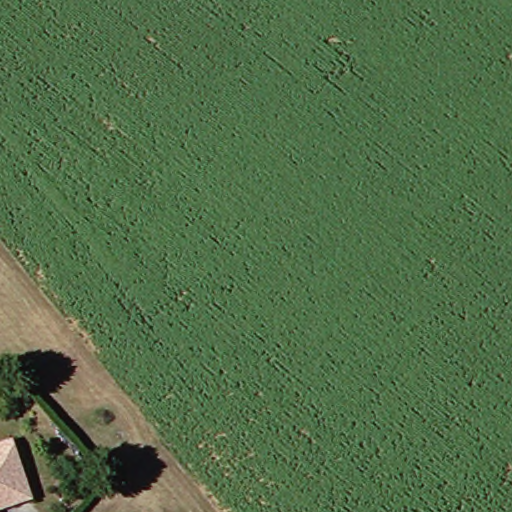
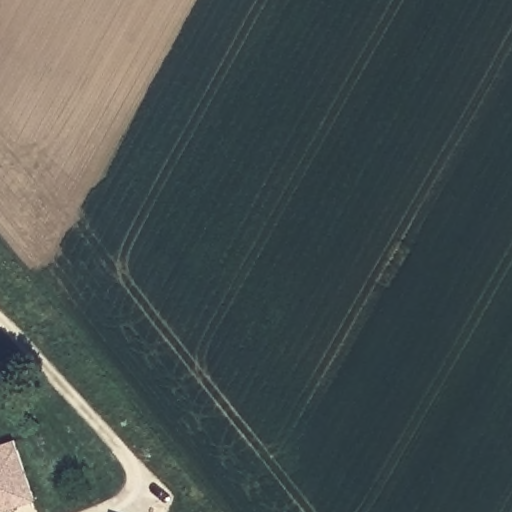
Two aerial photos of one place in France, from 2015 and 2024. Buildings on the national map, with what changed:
unchanged [(42,497),(2,508),(3,512),(0,512),(0,458),(29,450),(42,497)]

